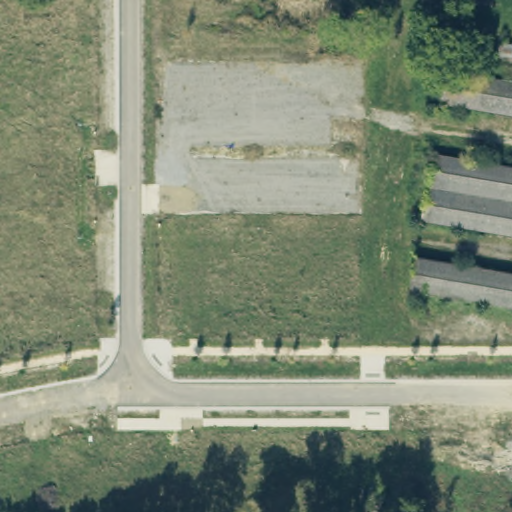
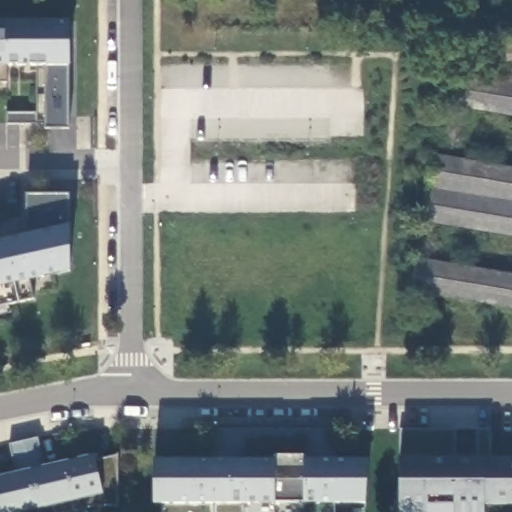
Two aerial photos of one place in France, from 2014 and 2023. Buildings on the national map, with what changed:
new [(69,21),(70,66),(70,129),(47,130),(47,68),(8,67),(9,82),(0,83),(0,22),(69,21)]
unchanged [(455,61),(496,69),(502,38),(512,41),(512,117),(447,109),(455,61)]
unchanged [(512,238),(421,223),(432,155),(512,169),(512,238)]
new [(25,235),(25,196),(69,196),(69,227),(70,273),(32,281),(34,300),(0,307),(0,241),(25,235)]
unchanged [(420,260),(512,275),(512,309),(414,294),(414,293),(420,260)]
new [(153,459),(211,458),(212,429),(336,428),(336,460),(370,459),(366,504),(335,506),(334,512),(163,512),(164,504),(154,504),(153,459)]
new [(398,431),(452,431),(453,458),(512,457),(512,504),(484,505),(484,512),(400,512),(399,456),(398,431)]
new [(14,472),(7,444),(37,437),(44,465),(94,454),(95,461),(116,455),(116,507),(97,506),(73,512),(54,512),(52,507),(39,510),(39,512),(0,512),(0,476),(14,472)]

